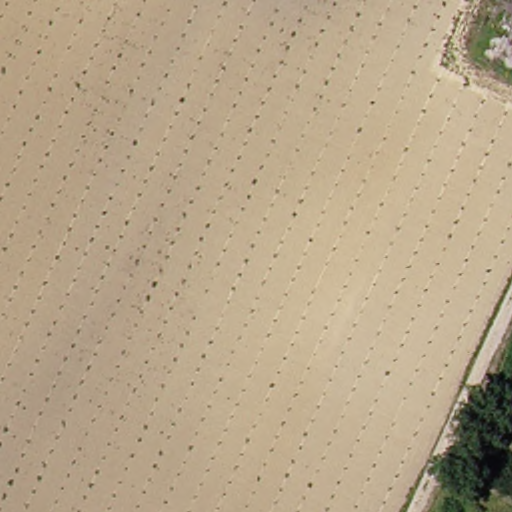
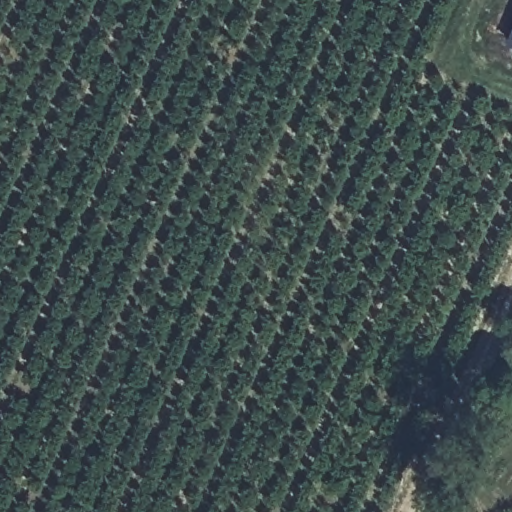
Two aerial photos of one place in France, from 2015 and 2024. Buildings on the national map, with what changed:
unchanged [(503,26),(512,7),(512,30),(503,26)]

